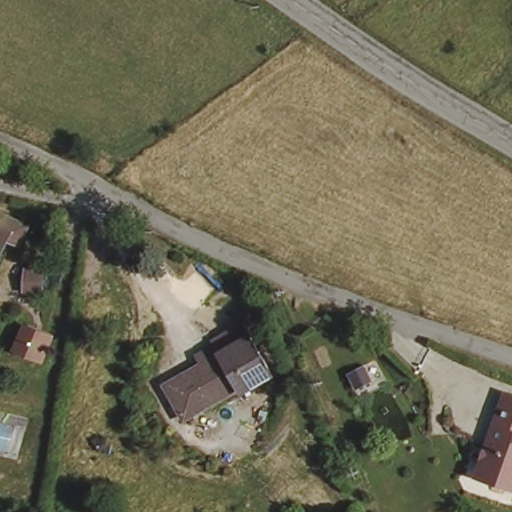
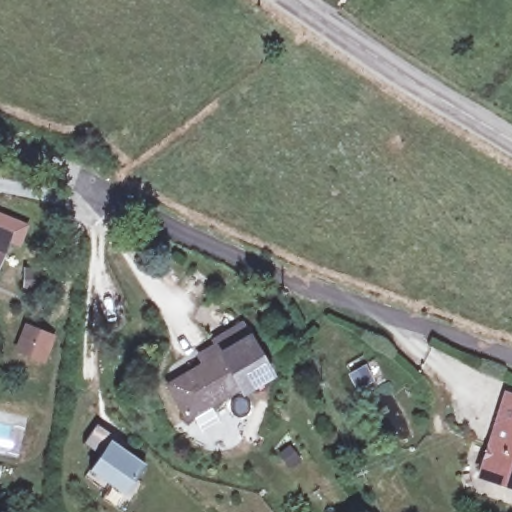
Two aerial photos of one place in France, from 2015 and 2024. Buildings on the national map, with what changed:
unchanged [(21,226),(14,242),(3,237),(0,245),(0,217),(21,226)]
unchanged [(27,264),(43,265),(40,287),(24,285),(27,264)]
unchanged [(23,325),(46,334),(38,352),(15,343),(23,325)]
unchanged [(243,327),(271,376),(243,392),(241,388),(185,420),(168,387),(203,367),(198,358),(217,348),(215,344),(243,327)]
unchanged [(512,495),(476,481),(481,467),(488,451),(494,434),(507,402),(512,404),(512,495)]
new [(98,425),(119,440),(117,443),(147,462),(126,495),(89,471),(98,456),(84,444),(98,425)]

